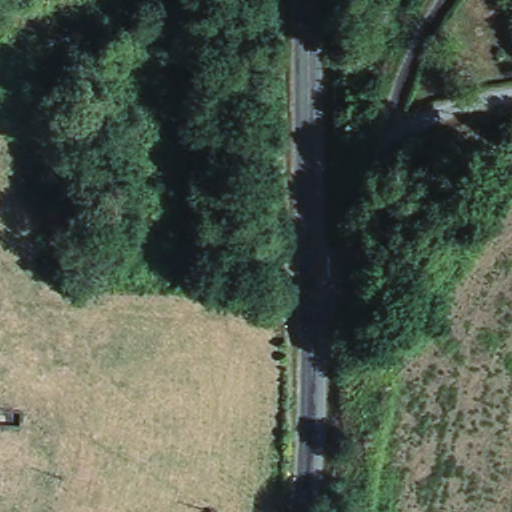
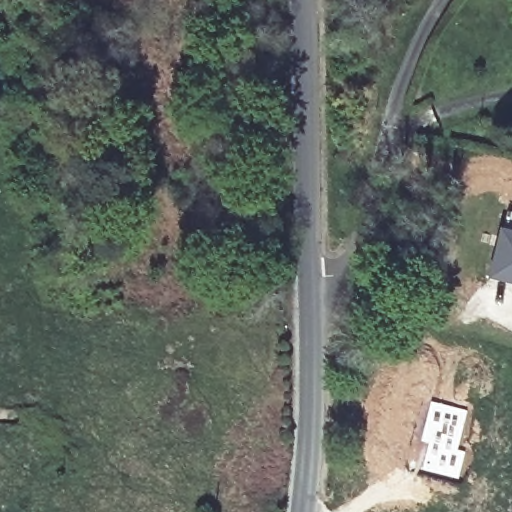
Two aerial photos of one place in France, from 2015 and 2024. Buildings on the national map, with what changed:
new [(488,279),(504,214),(512,216),(512,285),(488,279)]
new [(428,417),(439,418),(442,404),(466,411),(457,449),(465,451),(458,478),(436,472),(440,446),(422,441),(428,417)]

